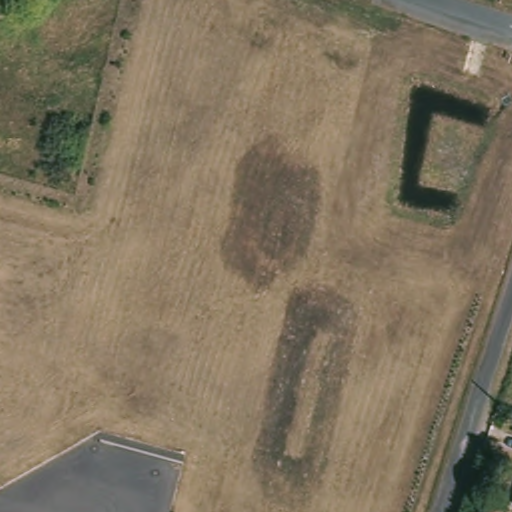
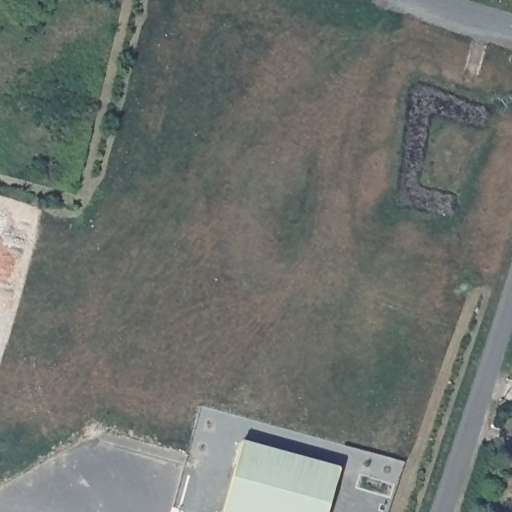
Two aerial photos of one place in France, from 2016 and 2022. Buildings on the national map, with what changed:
unchanged [(14,10),(3,6),(5,0),(17,0),(14,10)]
new [(339,470),(328,512),(222,512),(240,442),(339,470)]

